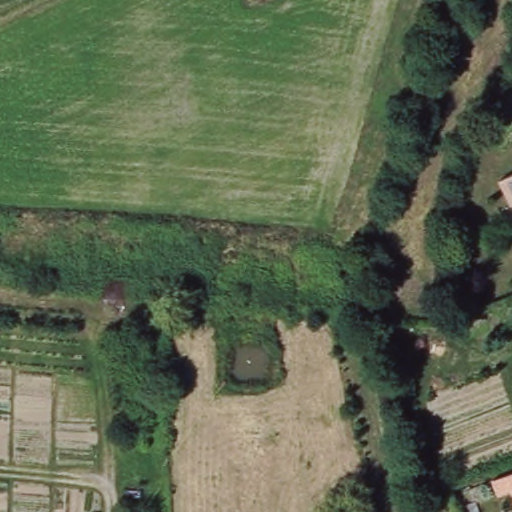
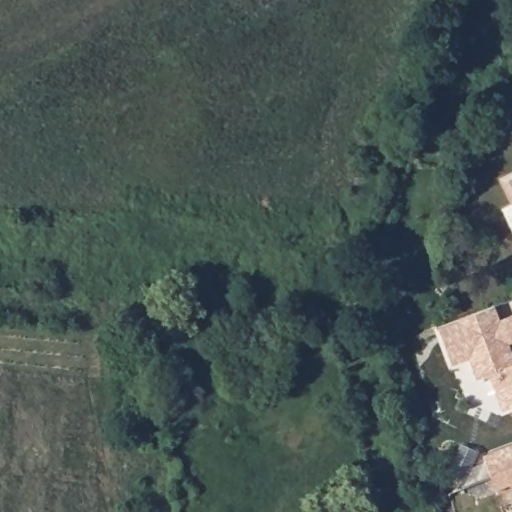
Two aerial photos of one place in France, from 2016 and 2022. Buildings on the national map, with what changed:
unchanged [(512,175),(512,186),(508,177),(512,175)]
new [(500,387),(493,368),(481,372),(473,351),(455,358),(441,321),(498,300),(503,314),(512,311),(512,337),(511,337),(512,340),(512,402),(506,404),(500,387)]

